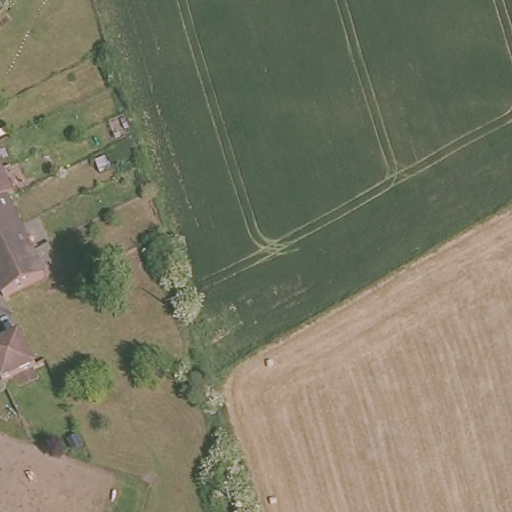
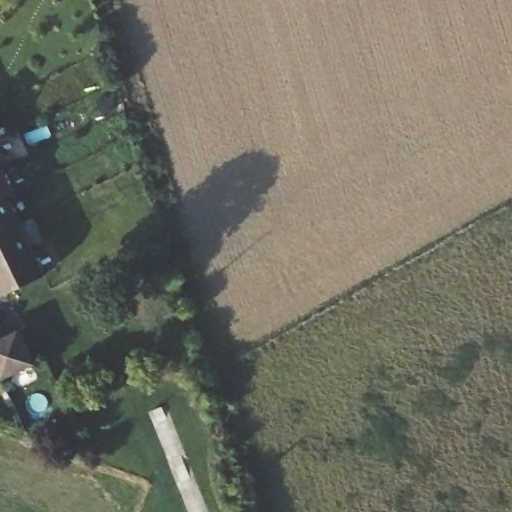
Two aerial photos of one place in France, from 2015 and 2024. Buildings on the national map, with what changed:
unchanged [(12,194),(5,197),(0,200),(0,167),(12,194)]
unchanged [(0,233),(0,200),(5,197),(18,225),(0,233)]
unchanged [(18,225),(31,254),(0,268),(0,233),(18,225)]
unchanged [(43,279),(1,298),(0,296),(0,268),(31,254),(43,279)]
unchanged [(15,333),(30,367),(0,381),(0,340),(15,333)]

